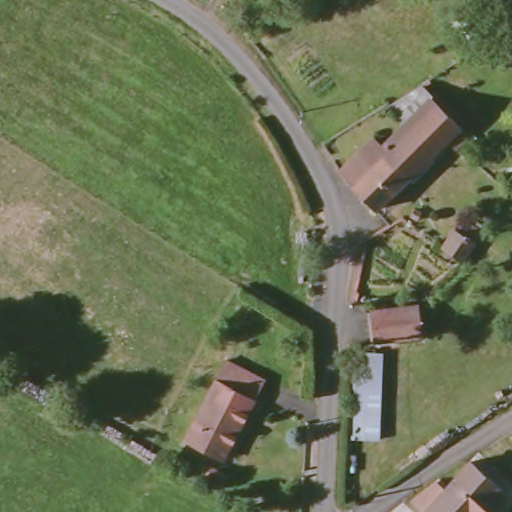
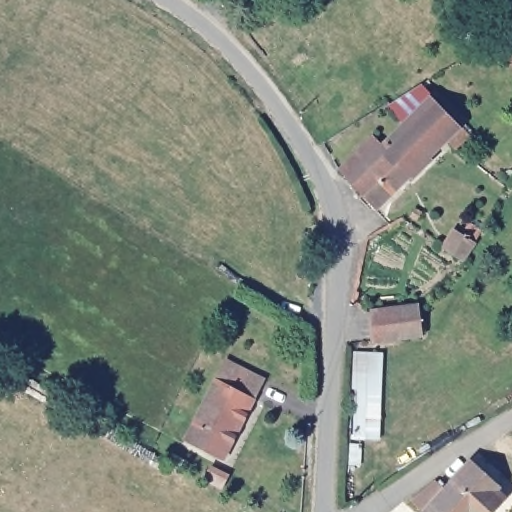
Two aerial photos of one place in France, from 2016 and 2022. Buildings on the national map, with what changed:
unchanged [(465,15),(480,40),(467,47),(452,23),(465,15)]
unchanged [(377,147),(400,123),(384,108),(415,89),(432,107),(437,101),(460,125),(455,130),(464,139),(455,151),(442,142),(372,214),(334,176),(367,140),(377,147)]
unchanged [(420,216),(415,221),(407,214),(412,207),(420,216)]
unchanged [(445,249),(456,227),(466,232),(472,226),(480,231),(462,260),(459,257),(445,249)]
unchanged [(420,337),(372,344),(368,312),(415,308),(420,337)]
unchanged [(347,433),(348,353),(378,354),(376,434),(347,433)]
unchanged [(227,356),(265,377),(220,454),(184,433),(227,356)]
unchanged [(502,488),(497,494),(504,500),(492,512),(425,512),(412,501),(438,479),(447,487),(469,461),(502,488)]

